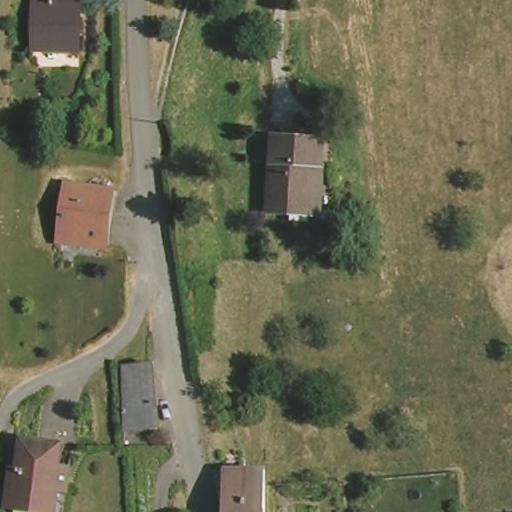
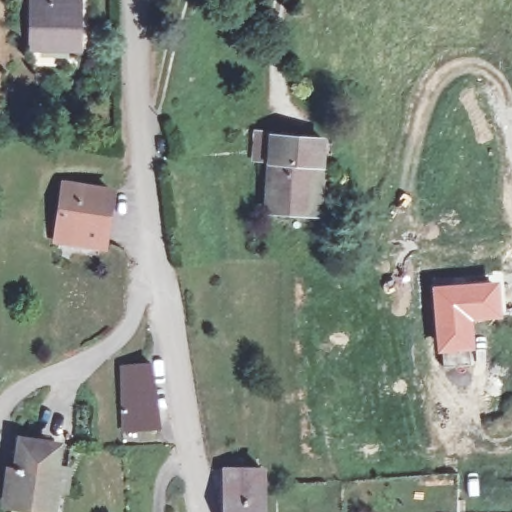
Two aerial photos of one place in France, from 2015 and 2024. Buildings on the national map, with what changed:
unchanged [(36,58),(32,0),(80,0),(82,55),(36,58)]
unchanged [(313,220),(273,220),(273,170),(255,171),(255,143),(272,143),(272,147),(281,147),(281,139),(295,140),(295,146),(322,146),(323,172),(323,220),(313,220)]
unchanged [(107,200),(103,247),(60,245),(64,198),(107,200)]
new [(439,351),(432,285),(499,280),(502,316),(473,319),(475,348),(468,349),(472,364),(445,367),(439,351)]
unchanged [(127,438),(125,375),(157,375),(161,440),(127,438)]
unchanged [(67,494),(58,494),(57,512),(7,512),(7,482),(19,482),(20,450),(49,451),(65,451),(64,474),(67,474),(67,494)]
unchanged [(270,479),(270,512),(227,512),(226,480),(270,479)]

